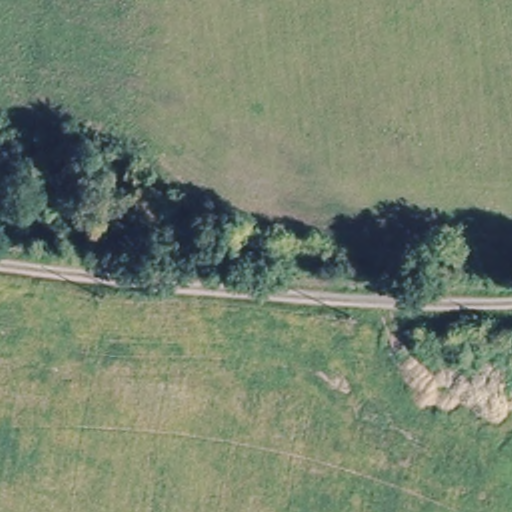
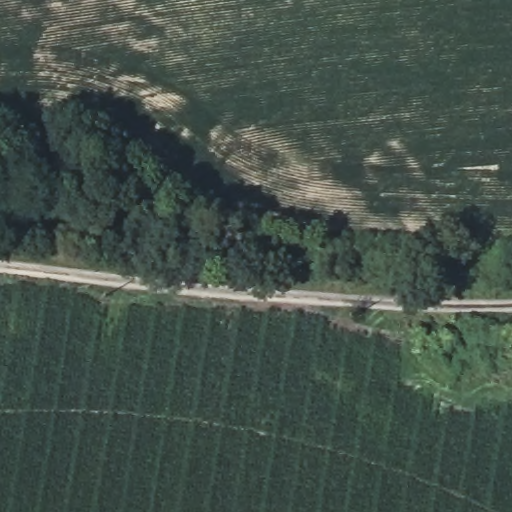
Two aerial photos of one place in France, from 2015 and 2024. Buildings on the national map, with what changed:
[]

